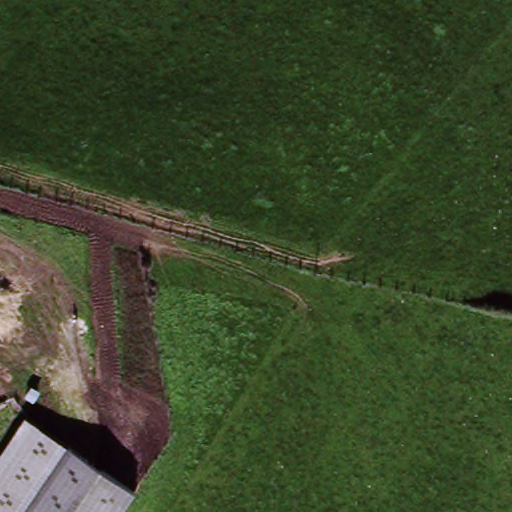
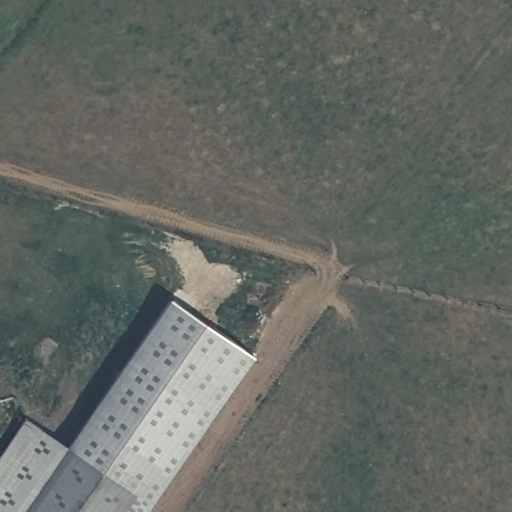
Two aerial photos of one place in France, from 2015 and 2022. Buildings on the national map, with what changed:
new [(255,356),(149,512),(113,512),(128,489),(71,450),(67,447),(171,297),(255,356)]
unchanged [(128,489),(113,512),(0,512),(0,463),(28,421),(71,450),(128,489)]

